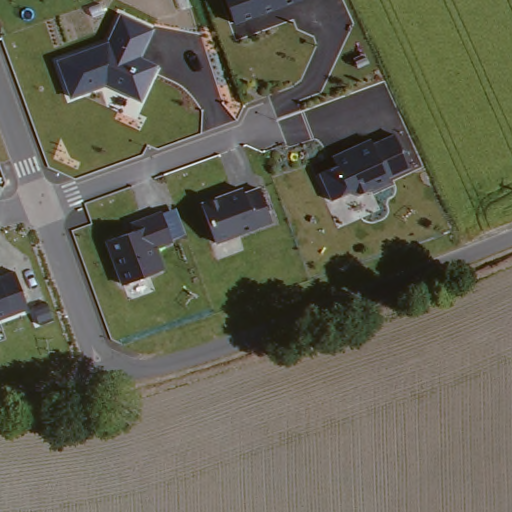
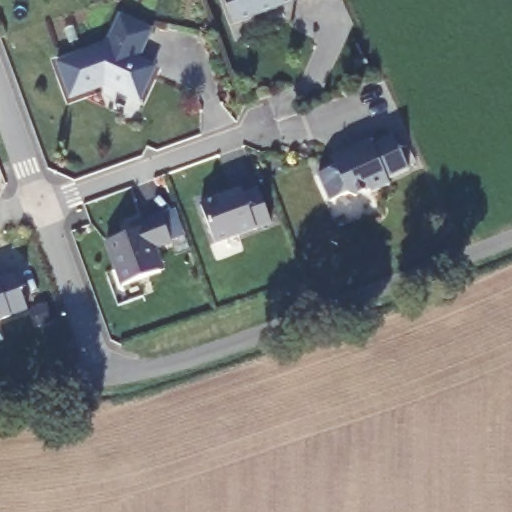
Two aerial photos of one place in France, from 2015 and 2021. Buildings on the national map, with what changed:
unchanged [(229,21),(222,0),(292,0),(229,21)]
unchanged [(56,61),(107,43),(119,15),(154,30),(141,59),(157,66),(140,103),(105,86),(69,99),(56,61)]
unchanged [(407,166),(385,174),(390,185),(363,195),(360,189),(332,201),(317,168),(393,136),(407,166)]
unchanged [(195,196),(212,188),(216,195),(240,188),(244,197),(257,193),(259,192),(269,224),(214,244),(195,196)]
unchanged [(105,238),(144,224),(146,231),(167,224),(174,245),(154,250),(160,271),(121,281),(105,238)]
unchanged [(26,308),(0,316),(0,283),(14,278),(26,308)]

